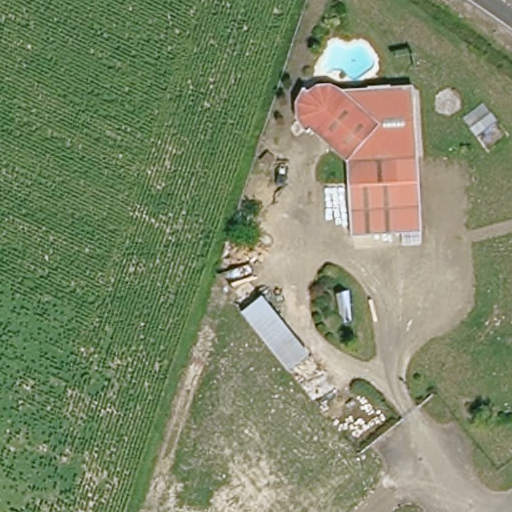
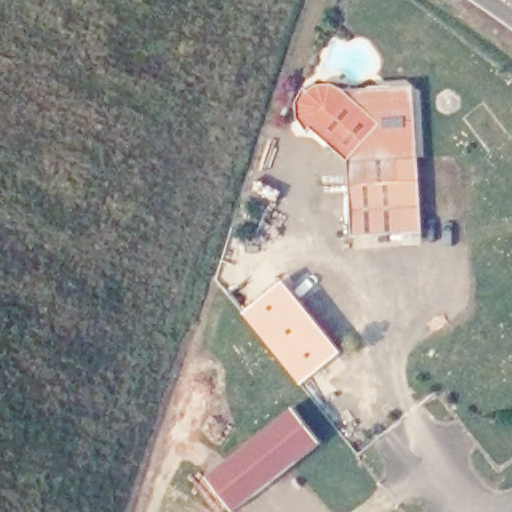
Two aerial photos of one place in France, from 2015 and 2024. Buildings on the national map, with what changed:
unchanged [(351,161),(324,137),(301,117),(300,101),(307,91),(309,87),(330,83),(337,87),(402,84),(413,91),(419,154),(403,159),(404,181),(383,183),(353,186),(351,161)]
unchanged [(423,231),(357,234),(353,186),(383,183),(404,181),(403,159),(419,154),(423,231)]
new [(244,314),(284,282),(341,352),(301,387),(244,314)]
demolished [(311,352),(292,367),(261,328),(249,313),(267,298),(311,352)]
new [(207,478),(292,407),(321,445),(234,512),(207,478)]

